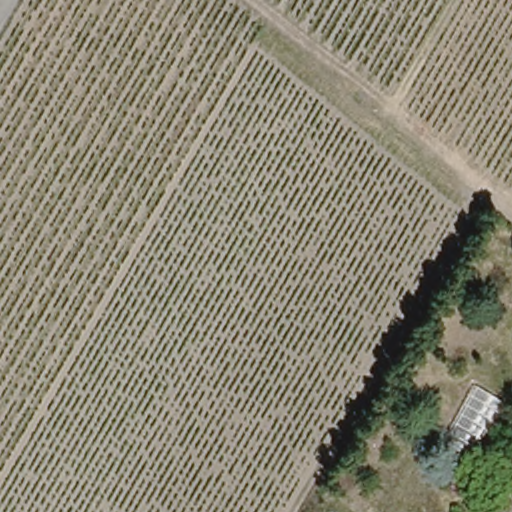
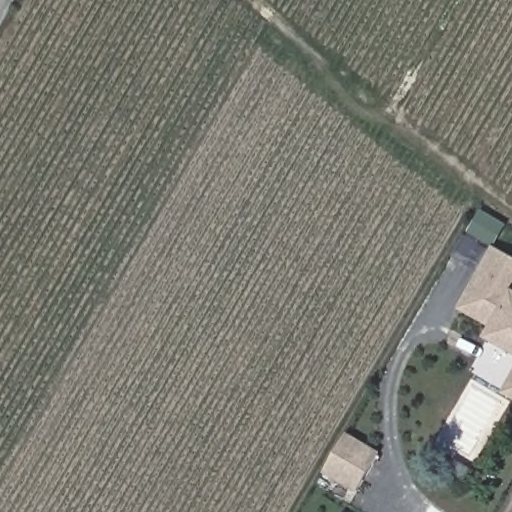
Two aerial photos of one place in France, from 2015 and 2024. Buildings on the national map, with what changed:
new [(512,261),(512,290),(511,292),(512,293),(512,351),(485,337),(491,325),(457,307),(489,249),(512,261)]
new [(512,374),(512,396),(504,391),(512,374)]
new [(314,477),(341,430),(380,453),(353,500),(314,477)]

